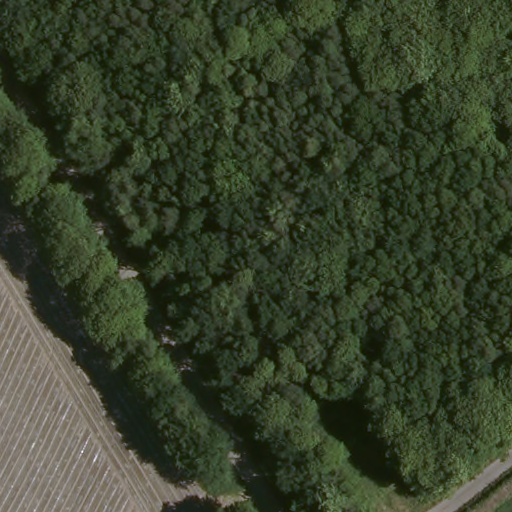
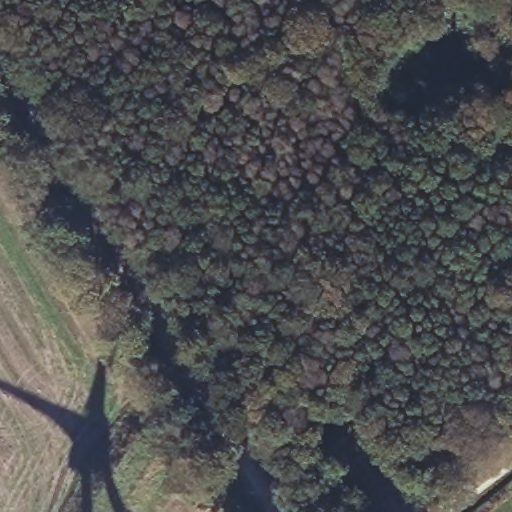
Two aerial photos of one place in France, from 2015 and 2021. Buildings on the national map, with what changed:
[]

